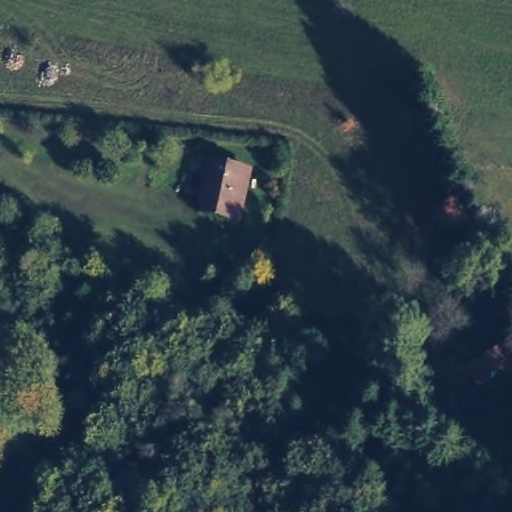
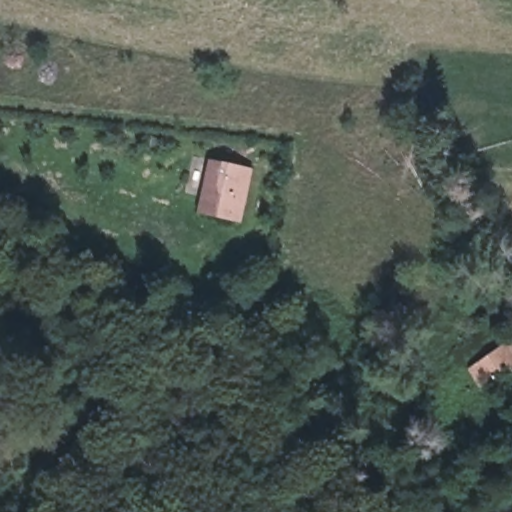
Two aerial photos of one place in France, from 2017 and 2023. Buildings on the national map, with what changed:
unchanged [(232,209),(211,203),(217,171),(239,175),(232,209)]
unchanged [(491,380),(478,365),(500,350),(512,366),(512,367),(491,380)]

